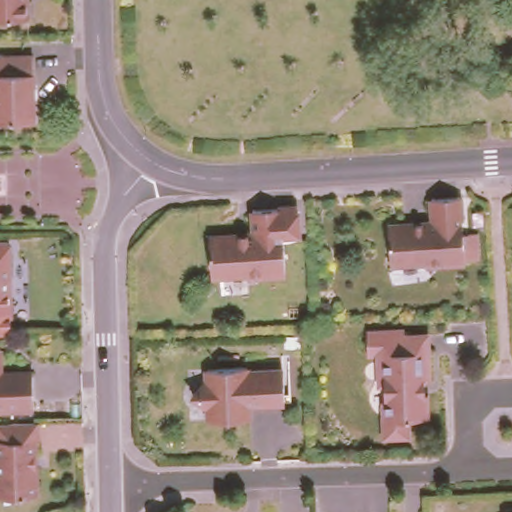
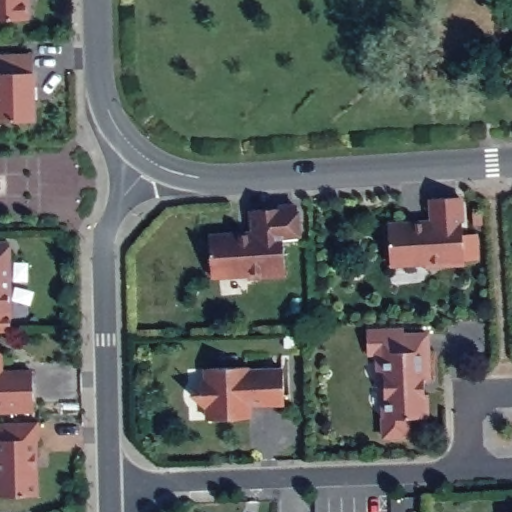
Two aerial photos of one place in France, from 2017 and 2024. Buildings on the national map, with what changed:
unchanged [(22,19),(0,20),(0,0),(21,0),(22,19)]
unchanged [(28,80),(27,80),(28,115),(0,116),(0,51),(27,50),(28,80)]
unchanged [(454,198),(458,236),(471,235),(473,260),(459,261),(460,265),(422,268),(422,265),(387,268),(383,229),(427,224),(425,201),(454,198)]
unchanged [(293,235),(276,235),(279,275),(241,277),(241,275),(205,277),(203,237),(248,234),(246,210),(291,207),(293,235)]
unchanged [(9,314),(0,314),(0,245),(8,245),(9,314)]
unchanged [(428,380),(424,380),(426,417),(408,418),(408,436),(384,437),(384,417),(386,417),(384,385),(379,385),(378,354),(367,355),(366,332),(389,331),(389,336),(427,335),(428,380)]
unchanged [(230,420),(203,420),(203,406),(199,406),(186,395),(198,383),(202,383),(201,370),(241,368),(241,373),(278,371),(279,403),(243,405),(243,419),(230,420)]
unchanged [(28,412),(0,413),(0,374),(26,373),(28,412)]
unchanged [(36,496),(0,496),(0,439),(35,439),(36,496)]

